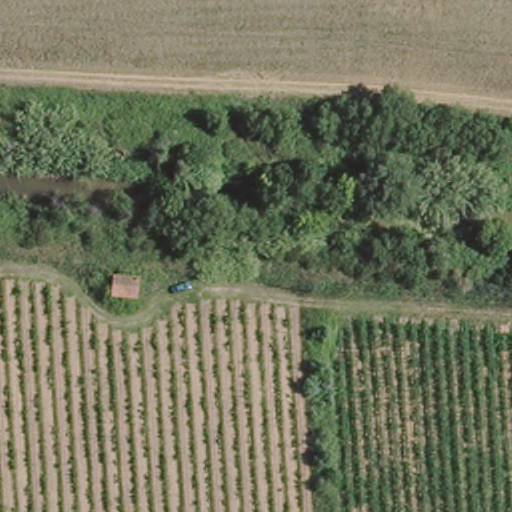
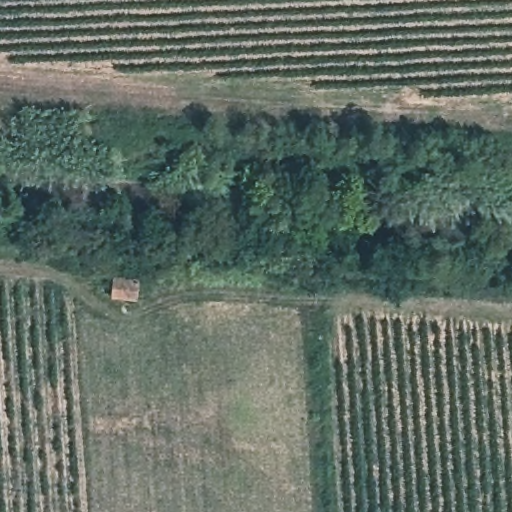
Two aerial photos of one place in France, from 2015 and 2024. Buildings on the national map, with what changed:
unchanged [(137,275),(135,306),(109,305),(110,274),(137,275)]

